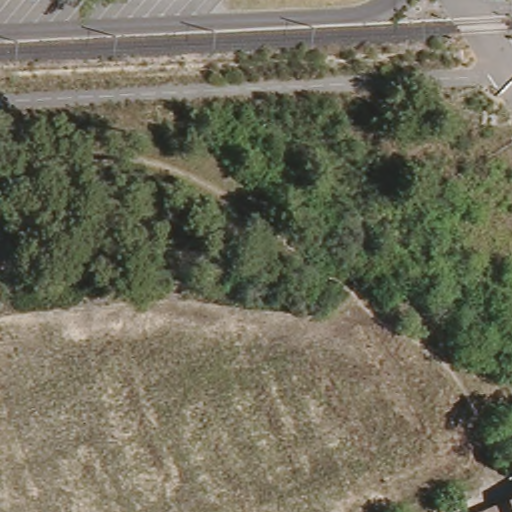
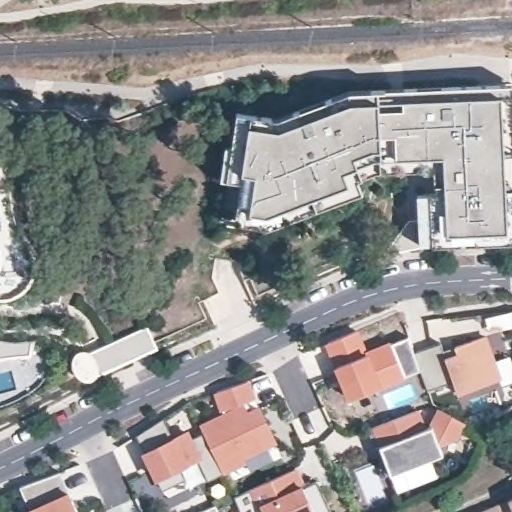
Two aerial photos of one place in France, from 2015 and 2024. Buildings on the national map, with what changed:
new [(420,220),(417,194),(434,193),(433,167),(379,169),(364,176),(357,179),(362,191),(267,226),(235,221),(240,181),(226,179),(220,178),(224,146),(231,147),(238,112),(276,119),(348,91),(378,89),(378,84),(512,80),(512,241),(421,246),(384,254),(408,220),(420,220)]
new [(3,150),(7,153),(11,159),(13,164),(13,172),(12,183),(13,197),(15,210),(19,222),(24,232),(30,243),(35,254),(34,265),(32,274),(27,281),(21,287),(14,290),(5,293),(0,293),(0,148),(3,150)]
new [(156,348),(98,374),(96,377),(92,380),(89,380),(85,380),(81,378),(77,375),(74,371),(73,367),(72,361),(74,357),(77,353),(81,351),(86,351),(90,352),(147,327),(156,348)]
new [(356,332),(365,355),(391,344),(405,377),(351,400),(327,344),(356,332)]
new [(414,352),(441,343),(445,357),(457,354),(455,347),(485,338),(498,382),(457,394),(453,382),(427,390),(414,352)]
new [(4,341),(12,342),(20,341),(34,340),(32,357),(0,361),(0,340),(4,341)]
new [(457,354),(445,357),(443,351),(455,347),(457,354)]
new [(247,381),(254,397),(242,402),(248,415),(260,410),(274,443),(241,458),(243,462),(222,472),(202,430),(199,424),(225,415),(217,392),(247,381)]
new [(242,402),(249,399),(254,412),(248,415),(242,402)]
new [(417,411),(424,429),(432,426),(440,409),(463,422),(455,438),(439,444),(443,454),(391,475),(386,476),(367,430),(375,427),(417,411)]
demolished [(512,417),(512,426),(503,431),(494,418),(508,410),(512,417)]
new [(222,472),(207,481),(206,479),(166,498),(144,451),(137,435),(164,417),(174,437),(186,431),(188,437),(202,430),(222,472)]
new [(294,469),(303,488),(316,481),(330,512),(240,512),(234,497),(294,469)]
new [(60,472),(70,493),(77,512),(28,512),(36,508),(26,484),(54,474),(60,472)]
new [(26,484),(36,508),(30,511),(20,486),(26,484)]
new [(218,512),(200,512),(215,505),(218,512)]
unchanged [(512,509),(512,512),(504,512),(512,509)]

